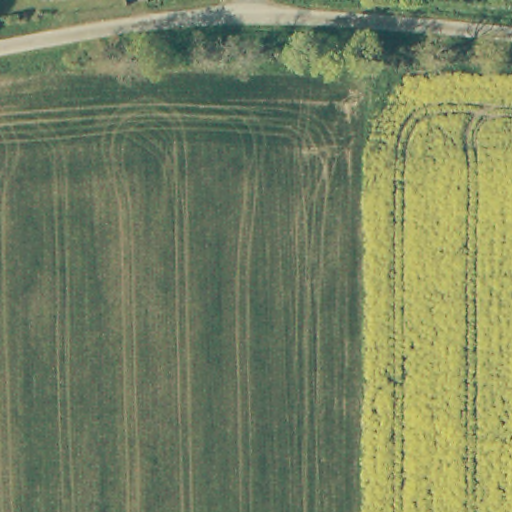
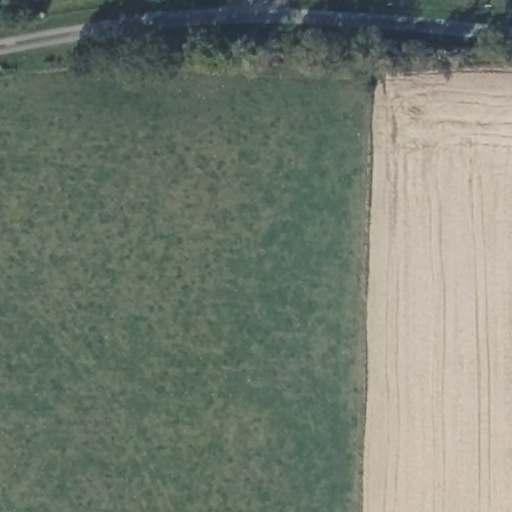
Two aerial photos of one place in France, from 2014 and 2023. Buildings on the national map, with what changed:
unchanged [(383,39),(386,42),(386,46),(385,50),(382,53),(378,54),(375,54),(371,52),(368,49),(367,45),(368,42),(371,38),(383,39)]

